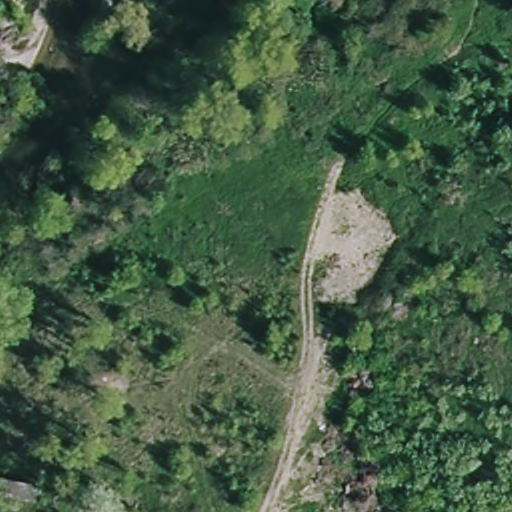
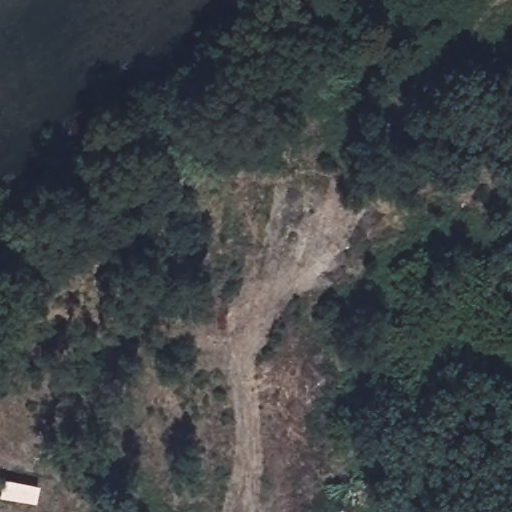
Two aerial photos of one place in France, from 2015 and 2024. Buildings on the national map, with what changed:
unchanged [(36,484),(33,499),(0,493),(0,478),(36,484)]

